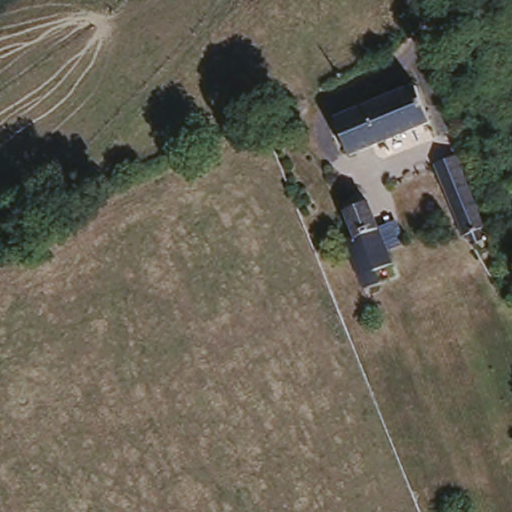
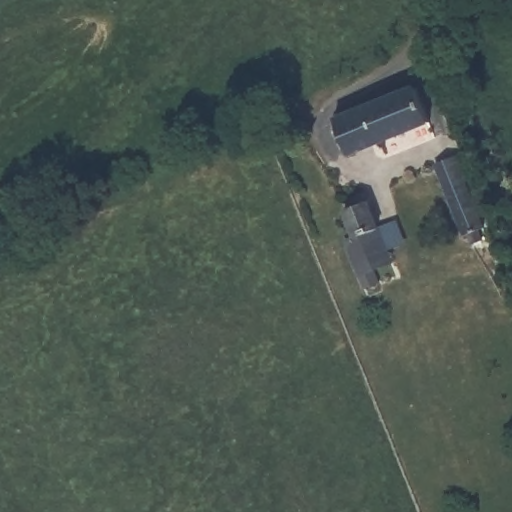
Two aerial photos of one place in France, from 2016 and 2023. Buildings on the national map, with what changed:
unchanged [(428,117),(348,146),(332,110),(415,77),(428,117)]
unchanged [(456,147),(483,219),(476,220),(480,232),(471,235),(466,225),(462,227),(435,156),(456,147)]
unchanged [(358,230),(347,202),(368,195),(392,255),(378,262),(382,275),(368,280),(350,232),(358,230)]

